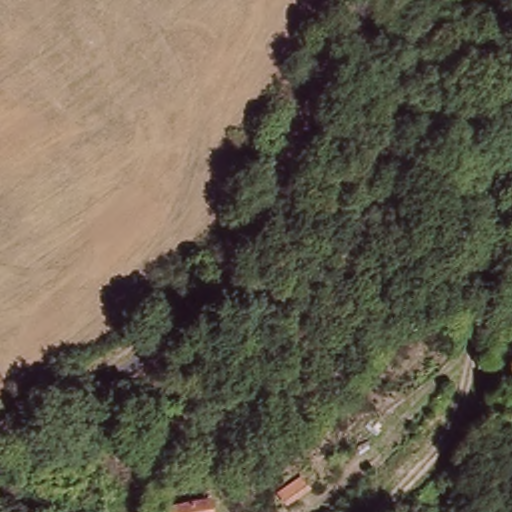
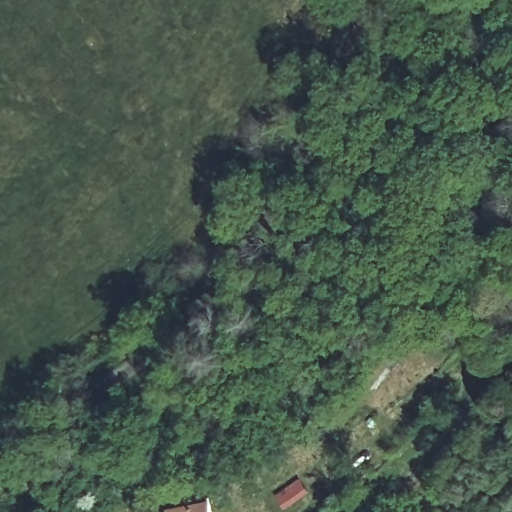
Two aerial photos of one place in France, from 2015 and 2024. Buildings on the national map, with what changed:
unchanged [(287,505),(281,495),(303,478),(311,487),(287,505)]
unchanged [(170,505),(208,493),(214,512),(172,512),(170,505)]

